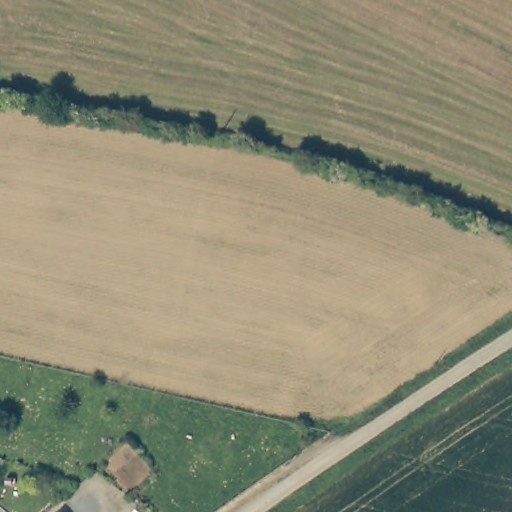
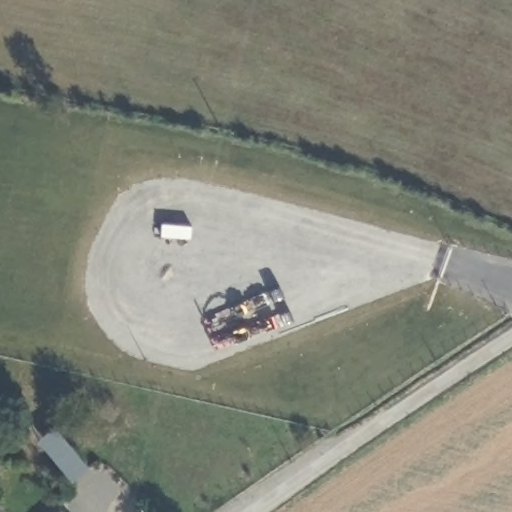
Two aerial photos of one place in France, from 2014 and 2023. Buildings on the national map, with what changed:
new [(73,481),(38,440),(54,426),(91,468),(73,481)]

